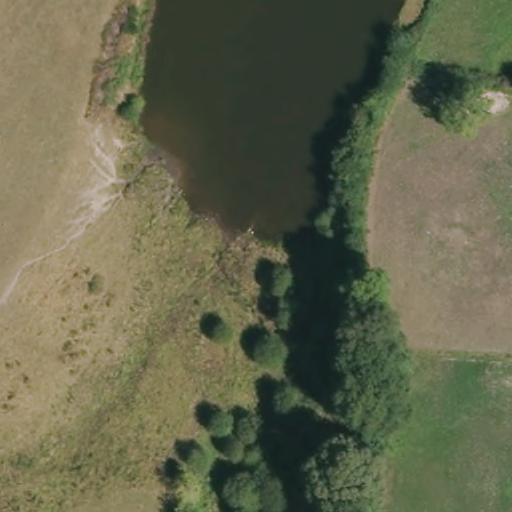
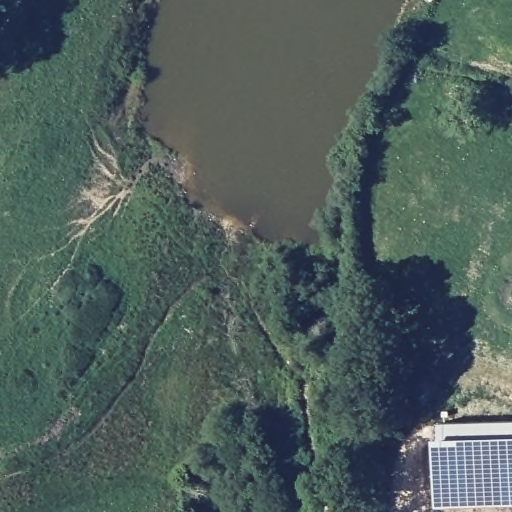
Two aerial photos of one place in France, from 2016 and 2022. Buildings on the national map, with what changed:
new [(437,434),(440,434),(440,420),(512,419),(512,503),(437,504),(437,434)]

